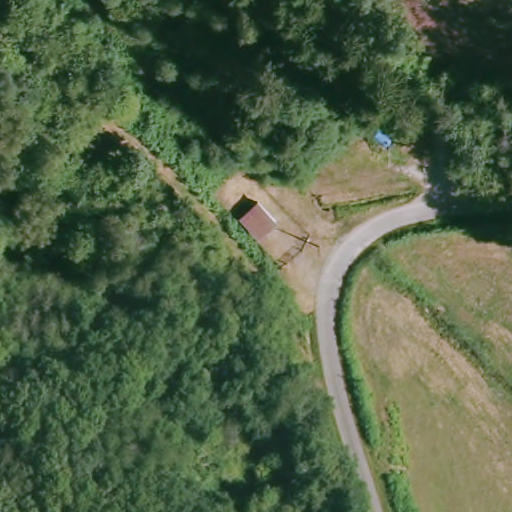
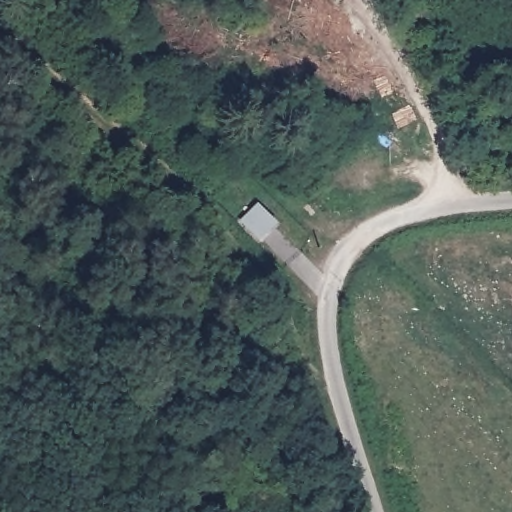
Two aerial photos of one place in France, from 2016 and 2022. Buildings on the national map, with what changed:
unchanged [(262,242),(245,222),(261,206),(280,226),(262,242)]

